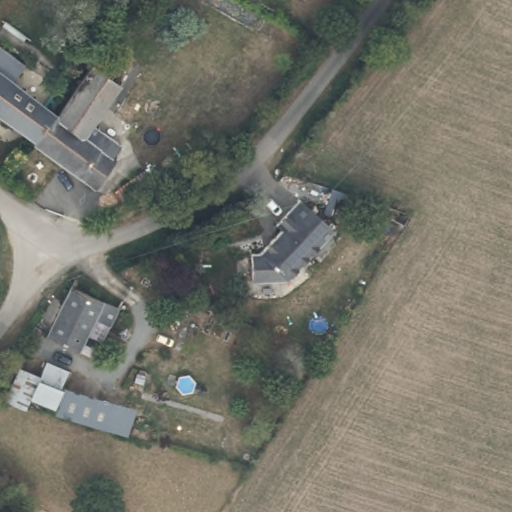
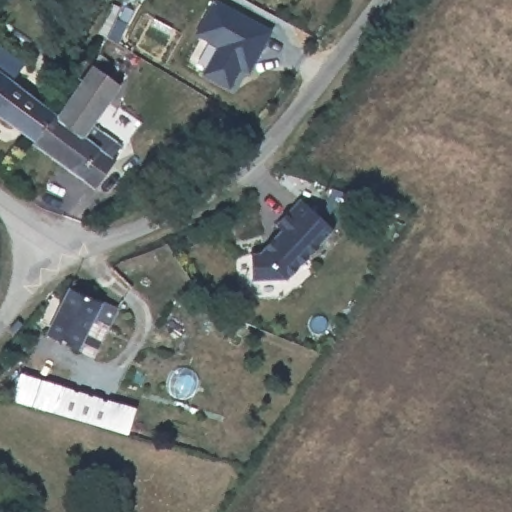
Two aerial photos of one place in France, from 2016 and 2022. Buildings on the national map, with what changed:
new [(214,0),(215,0),(272,31),(248,73),(240,70),(229,89),(201,74),(216,46),(195,35),(214,0)]
unchanged [(22,83),(12,96),(0,110),(0,41),(35,66),(22,83)]
unchanged [(114,159),(95,188),(37,148),(40,143),(47,132),(57,115),(79,81),(101,53),(121,66),(110,84),(116,89),(91,127),(116,144),(110,155),(114,159)]
unchanged [(0,113),(0,110),(12,96),(22,83),(57,115),(47,132),(40,143),(0,113)]
unchanged [(121,189),(191,165),(197,182),(128,209),(121,189)]
unchanged [(287,279),(285,277),(282,280),(252,282),(250,254),(258,254),(280,229),(273,224),(297,197),(332,228),(287,279)]
unchanged [(74,345),(42,330),(64,285),(112,307),(104,325),(91,352),(74,345)]

